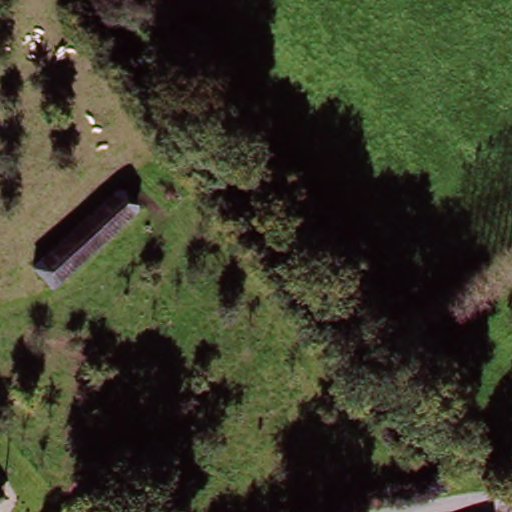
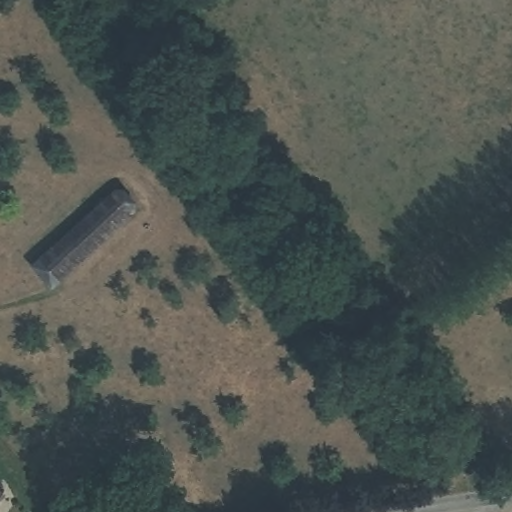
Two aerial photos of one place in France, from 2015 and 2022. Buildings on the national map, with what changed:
unchanged [(53,286),(33,264),(116,188),(136,209),(53,286)]
unchanged [(2,500),(0,502),(0,498),(2,500)]

